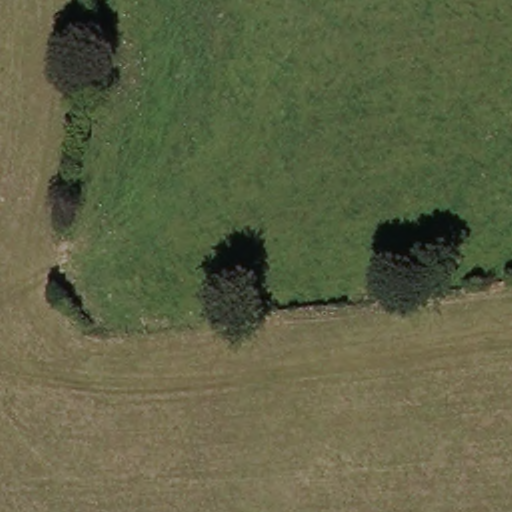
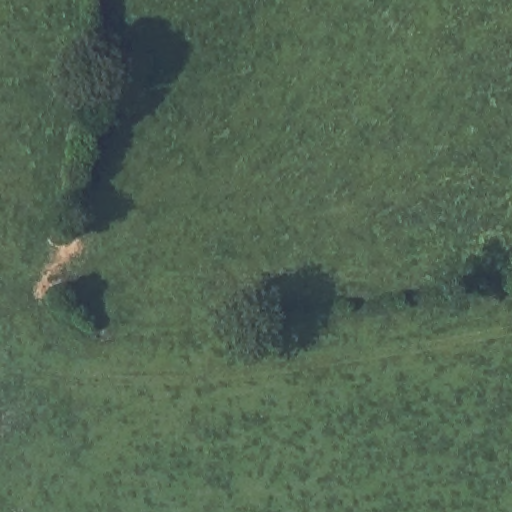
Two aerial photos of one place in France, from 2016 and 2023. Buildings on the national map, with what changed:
[]

